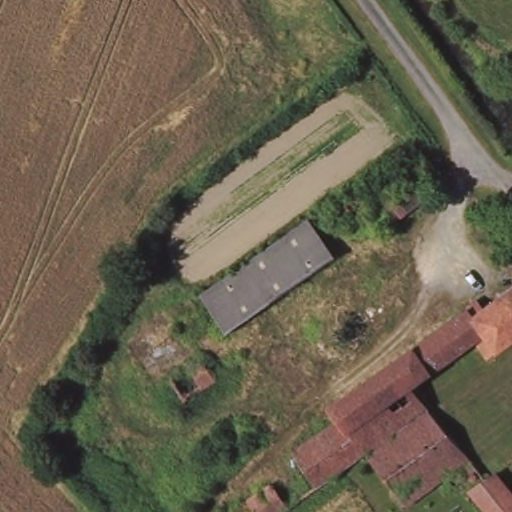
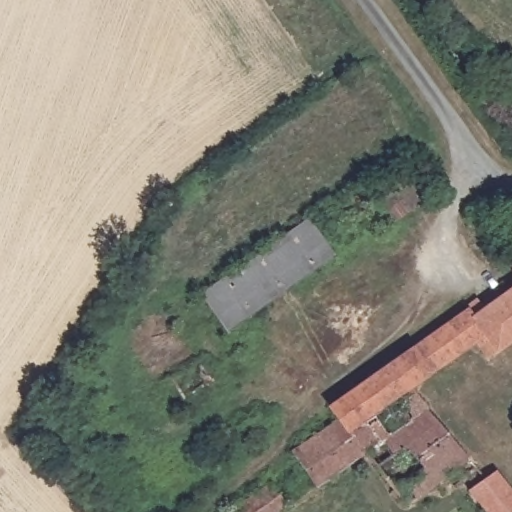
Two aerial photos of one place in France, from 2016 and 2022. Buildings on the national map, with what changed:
unchanged [(377,203),(391,192),(409,177),(404,171),(411,167),(432,194),(408,213),(394,223),(377,203)]
unchanged [(358,195),(368,210),(342,228),(332,214),(358,195)]
unchanged [(200,295),(308,219),(335,258),(228,334),(200,295)]
unchanged [(316,435),(339,420),(329,407),(468,309),(467,308),(477,300),(484,309),(512,289),(512,341),(487,359),(475,342),(410,388),(477,468),(463,480),(461,477),(456,470),(406,507),(376,469),(365,454),(318,488),(293,452),(316,435)]
unchanged [(199,359),(213,381),(183,399),(170,378),(199,359)]
unchanged [(495,474),(512,493),(512,512),(487,512),(470,492),(495,474)]
unchanged [(265,481),(283,504),(271,512),(221,512),(265,481)]

